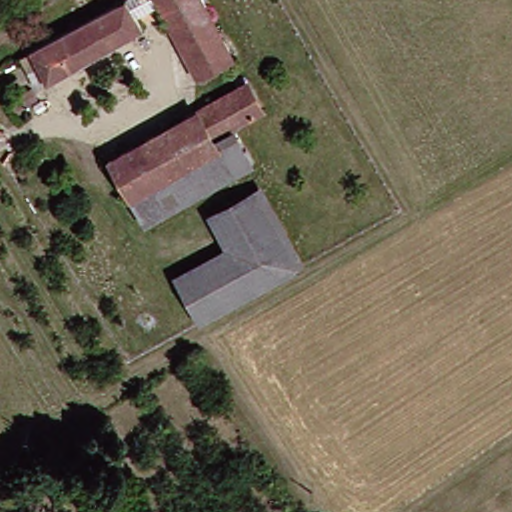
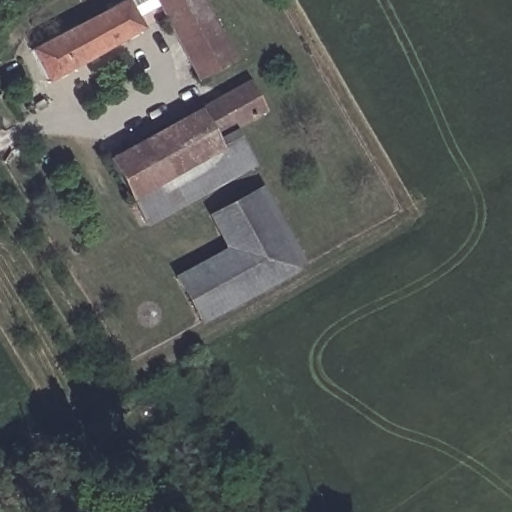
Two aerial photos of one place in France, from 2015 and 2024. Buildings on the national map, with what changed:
unchanged [(90,22),(102,15),(131,0),(207,0),(236,58),(204,75),(168,6),(141,20),(145,28),(106,51),(96,58),(53,83),(35,51),(90,22)]
unchanged [(112,156),(120,151),(124,156),(250,84),(265,111),(239,127),(258,161),(237,173),(151,223),(112,156)]
unchanged [(210,319),(185,279),(239,247),(217,215),(265,187),(308,262),(210,319)]

